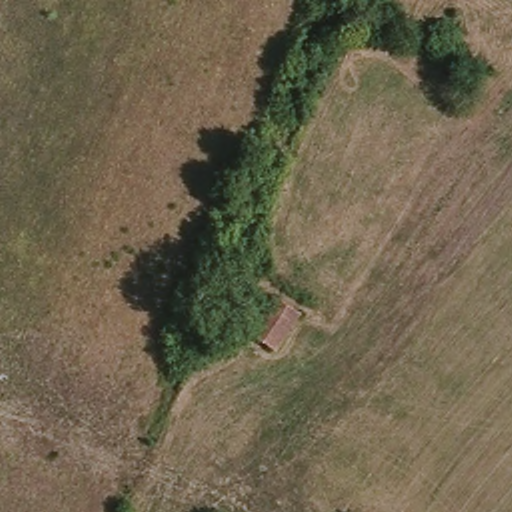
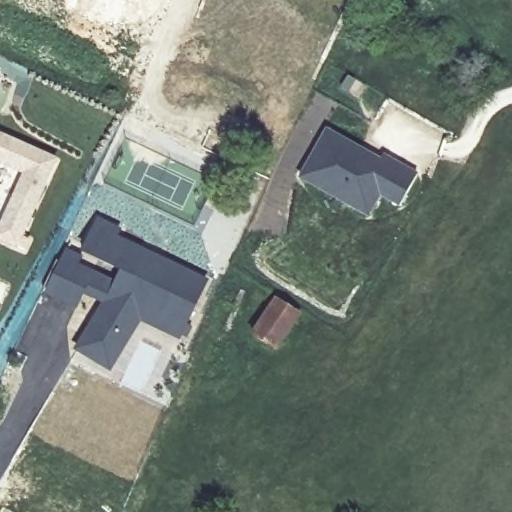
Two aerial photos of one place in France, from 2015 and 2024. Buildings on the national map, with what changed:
new [(326,129),(381,159),(385,154),(418,173),(399,208),(380,200),(368,220),(298,180),(326,129)]
new [(12,247),(0,242),(0,221),(0,220),(22,174),(0,163),(0,137),(52,160),(20,229),(17,237),(25,240),(20,251),(12,247)]
new [(76,350),(104,301),(86,292),(79,308),(46,292),(67,250),(82,257),(80,263),(116,280),(121,270),(82,251),(99,218),(121,230),(119,236),(209,280),(180,339),(141,320),(111,371),(76,350)]
unchanged [(296,315),(275,348),(254,335),(275,301),(296,315)]

